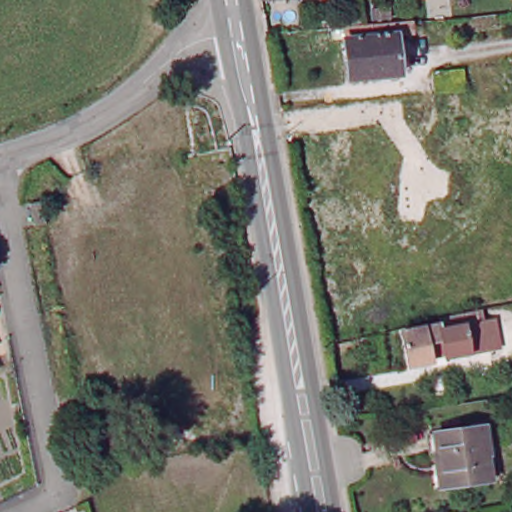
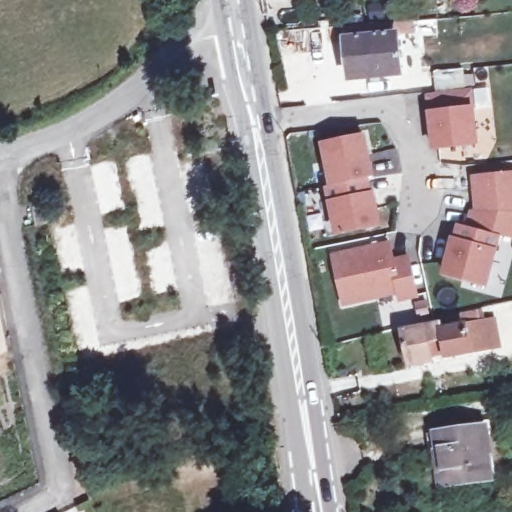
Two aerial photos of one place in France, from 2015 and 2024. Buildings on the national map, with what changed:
unchanged [(372,36),(419,32),(420,44),(403,46),(406,85),(355,90),(350,37),(372,36)]
unchanged [(436,72),(463,69),(465,88),(438,91),(436,72)]
new [(471,92),(476,144),(434,148),(429,97),(471,92)]
unchanged [(197,122),(194,103),(203,102),(207,121),(197,122)]
new [(361,136),(369,194),(371,194),(377,225),(335,233),(318,143),(361,136)]
new [(470,215),(475,214),(473,180),(512,176),(512,241),(496,237),(466,228),(470,215)]
unchanged [(34,226),(30,204),(43,202),(46,224),(34,226)]
new [(451,241),(453,241),(458,226),(466,228),(496,237),(483,286),(441,275),(451,241)]
new [(386,244),(390,261),(405,258),(412,296),(396,299),(395,292),(340,302),(331,255),(386,244)]
unchanged [(438,323),(464,317),(475,315),(478,327),(485,326),(489,351),(467,355),(445,359),(442,342),(424,346),(428,365),(407,369),(400,335),(440,327),(438,323)]
unchanged [(493,480),(440,487),(435,453),(432,433),(441,432),(485,426),(493,480)]

